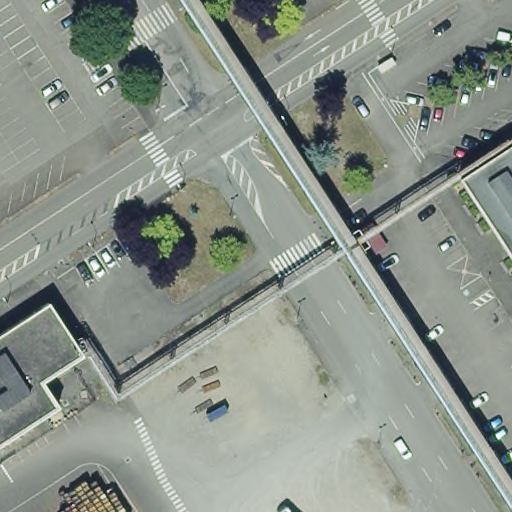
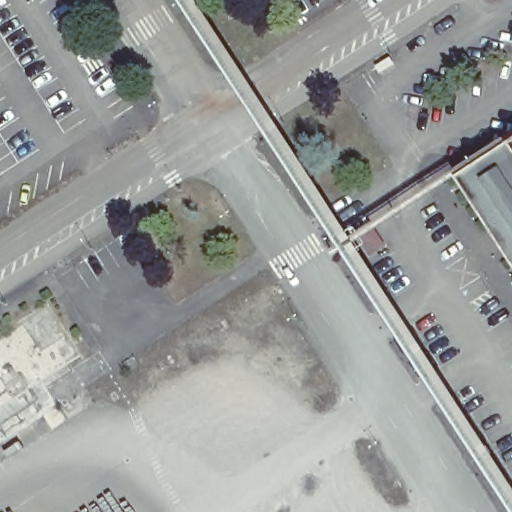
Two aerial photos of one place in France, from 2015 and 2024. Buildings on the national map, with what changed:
unchanged [(512,134),(512,167),(497,144),(512,134)]
unchanged [(512,248),(460,167),(497,144),(512,167),(512,248)]
new [(308,194),(323,217),(307,227),(292,204),(308,194)]
demolished [(48,306),(82,363),(40,389),(0,414),(0,335),(48,306)]
demolished [(40,389),(52,414),(0,443),(0,414),(40,389)]

